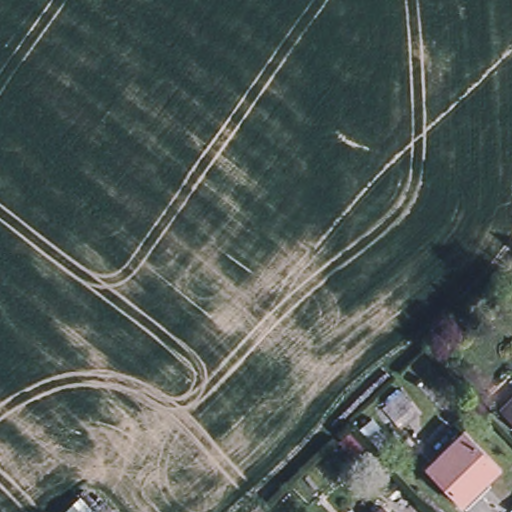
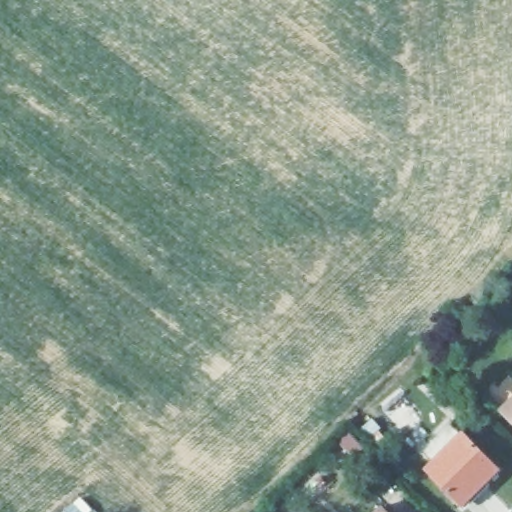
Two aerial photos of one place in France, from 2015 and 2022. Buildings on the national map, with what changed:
unchanged [(501,410),(487,397),(511,374),(512,375),(512,422),(501,410)]
unchanged [(456,429),(494,465),(457,505),(419,468),(456,429)]
unchanged [(385,506),(389,512),(379,512),(385,506)]

